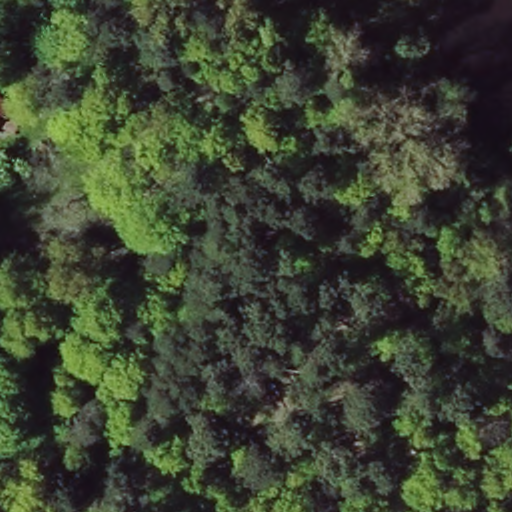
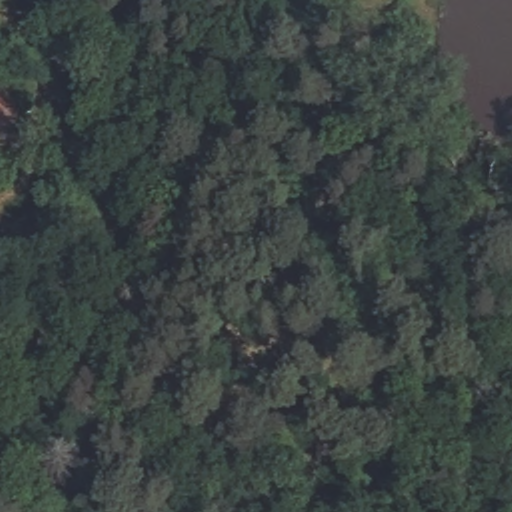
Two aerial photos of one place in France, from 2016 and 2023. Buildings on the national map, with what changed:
unchanged [(14,126),(0,118),(0,98),(22,108),(14,126)]

